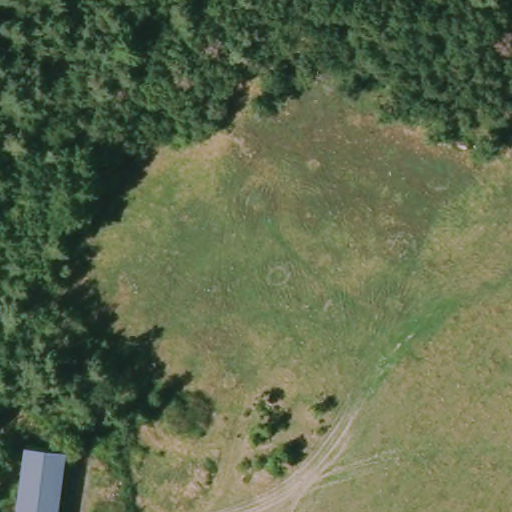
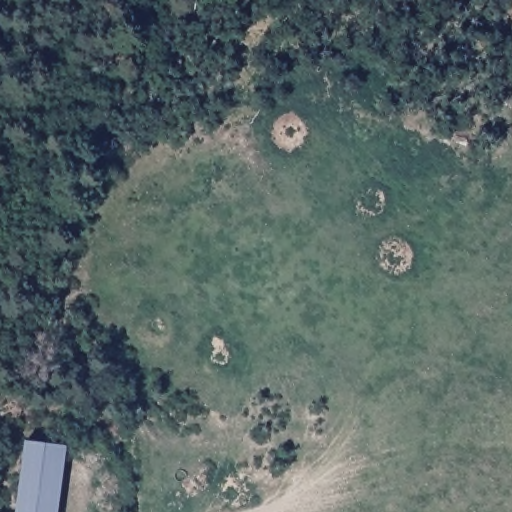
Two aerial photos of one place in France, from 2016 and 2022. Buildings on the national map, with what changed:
unchanged [(61,512),(18,512),(27,440),(69,446),(61,512)]

